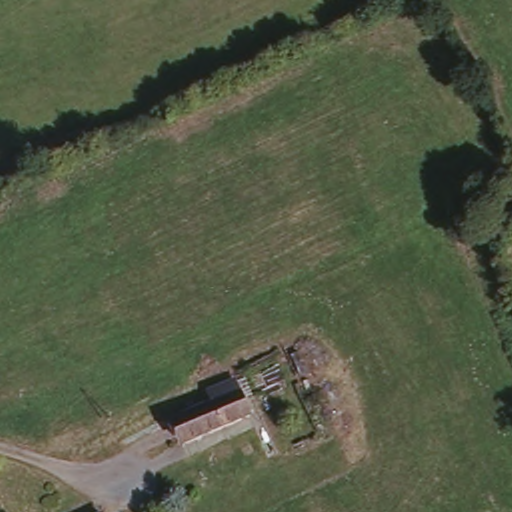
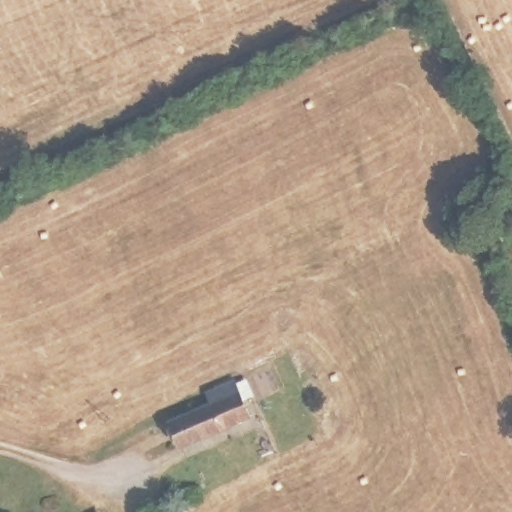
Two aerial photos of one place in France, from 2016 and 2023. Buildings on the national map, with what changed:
unchanged [(174,420),(220,400),(217,388),(229,381),(245,421),(183,448),(174,420)]

